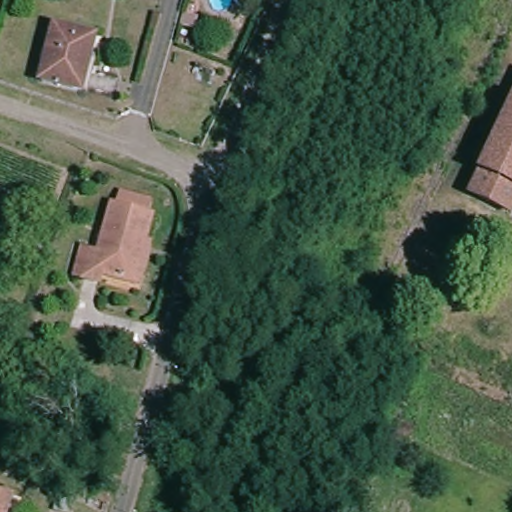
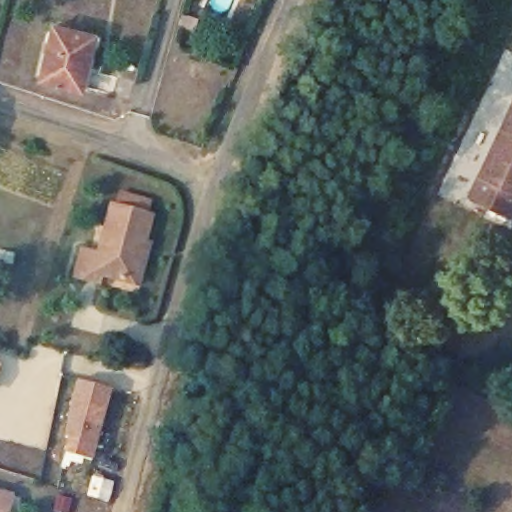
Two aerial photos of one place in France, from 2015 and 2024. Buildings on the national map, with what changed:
unchanged [(51,27),(93,37),(81,90),(39,80),(51,27)]
unchanged [(512,109),(512,214),(472,194),(512,109)]
unchanged [(138,280),(132,278),(100,270),(97,277),(74,271),(81,245),(96,249),(110,200),(113,201),(116,190),(149,199),(145,210),(149,211),(142,237),(149,238),(138,280)]
new [(0,364),(0,363),(1,363),(0,364)]
new [(66,452),(69,437),(65,436),(77,379),(110,387),(91,459),(66,452)]
unchanged [(0,492),(11,495),(6,512),(0,512),(0,492)]

